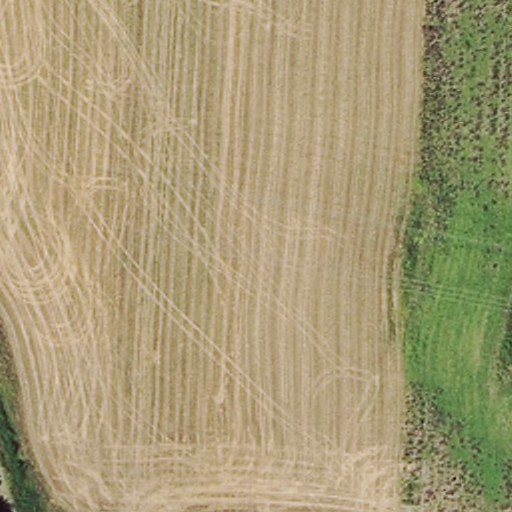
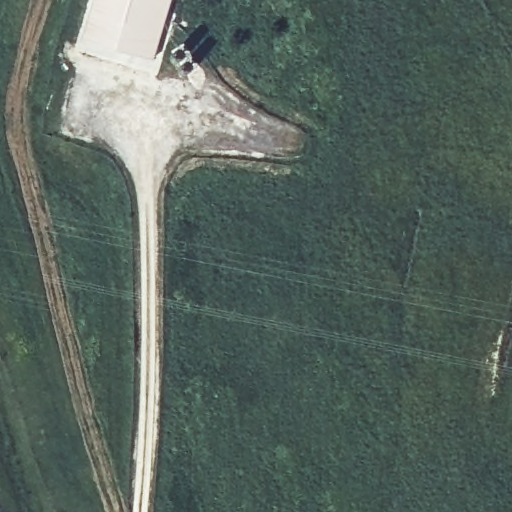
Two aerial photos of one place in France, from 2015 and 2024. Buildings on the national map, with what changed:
new [(83,36),(94,0),(174,0),(156,60),(83,36)]

